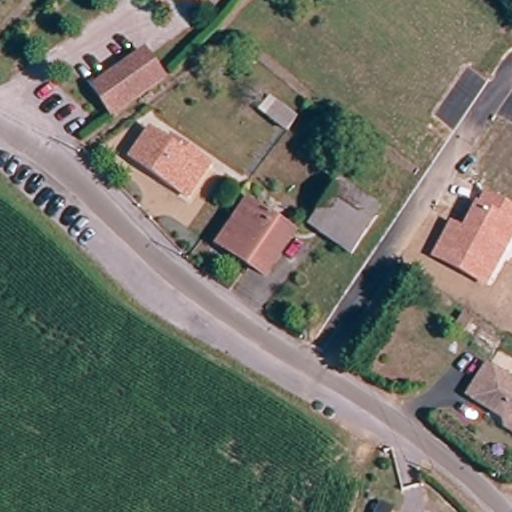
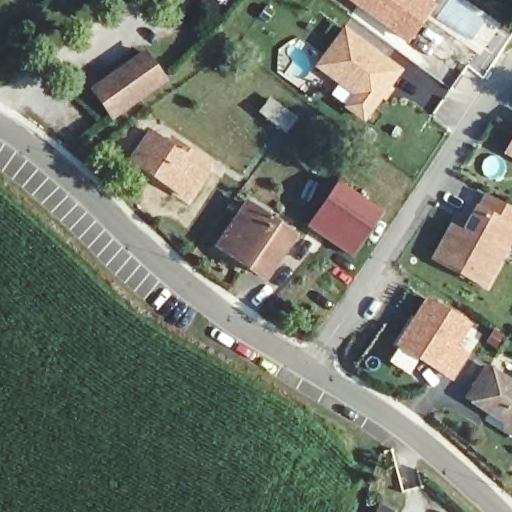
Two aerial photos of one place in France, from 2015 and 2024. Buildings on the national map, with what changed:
new [(437,1),(406,45),(379,27),(345,0),(436,0),(437,1)]
new [(404,70),(392,87),(395,90),(387,102),(382,99),(363,124),(342,111),(353,96),(313,68),(345,26),(404,70)]
unchanged [(144,52),(165,81),(114,116),(92,87),(144,52)]
unchanged [(287,131),(295,121),(308,130),(300,141),(287,131)]
unchanged [(156,133),(177,151),(185,144),(211,164),(185,193),(134,155),(156,133)]
new [(504,153),(512,139),(512,157),(504,153)]
unchanged [(344,186),(382,209),(349,253),(311,227),(344,186)]
unchanged [(462,228),(475,202),(478,203),(484,193),(512,208),(512,240),(487,287),(431,257),(449,221),(462,228)]
unchanged [(249,205),(296,237),(268,274),(222,242),(249,205)]
new [(396,347),(392,344),(427,294),(475,324),(471,332),(478,337),(451,381),(417,360),(408,374),(387,360),(396,347)]
unchanged [(512,390),(512,439),(495,427),(497,423),(462,402),(480,372),(512,390)]

